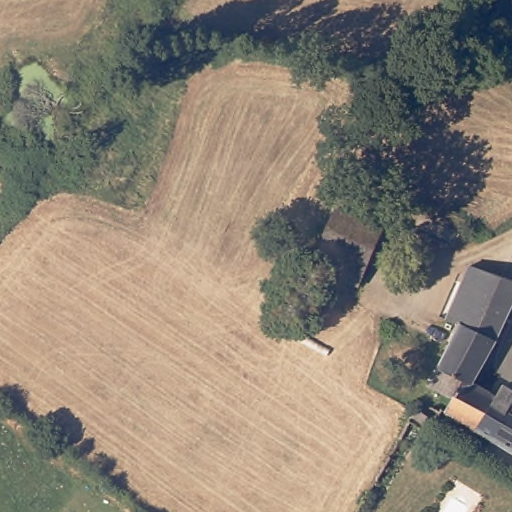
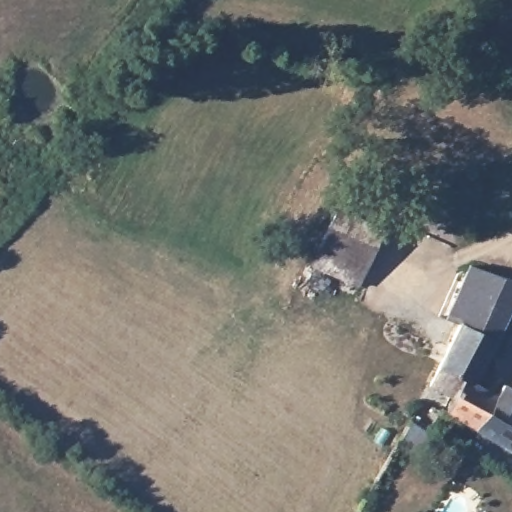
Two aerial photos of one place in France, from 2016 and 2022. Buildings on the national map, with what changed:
unchanged [(345,200),(391,219),(376,255),(328,235),(345,200)]
unchanged [(376,255),(365,277),(318,257),(328,235),(376,255)]
unchanged [(465,321),(451,313),(472,263),(512,274),(512,310),(477,377),(468,372),(456,393),(436,382),(456,341),(465,321)]
unchanged [(495,388),(502,393),(508,382),(512,384),(512,446),(447,407),(456,393),(468,372),(477,377),(495,388)]

